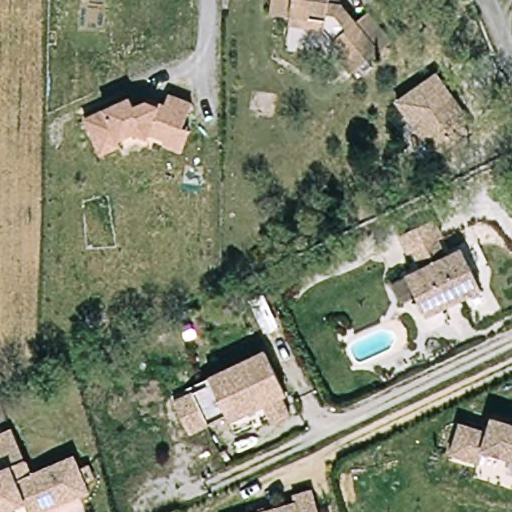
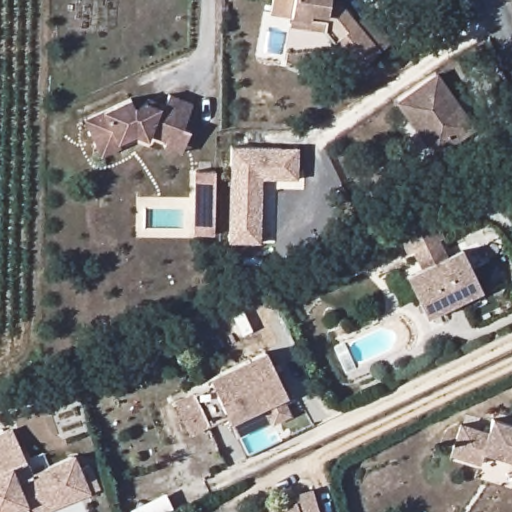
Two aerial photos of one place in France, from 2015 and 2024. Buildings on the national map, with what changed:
unchanged [(343,57),(318,27),(319,19),(265,15),(266,0),(335,0),(333,10),(347,12),(360,28),(373,18),(396,45),(351,81),(336,63),(343,57)]
unchanged [(434,163),(398,108),(439,81),(475,136),(434,163)]
unchanged [(170,144),(153,136),(149,139),(136,133),(121,140),(123,145),(104,155),(86,117),(134,97),(139,108),(156,101),(172,109),(177,98),(200,109),(187,133),(179,149),(170,144)]
new [(298,180),(263,179),(262,244),(229,243),(231,146),(299,147),(298,180)]
new [(215,171),(214,234),(193,234),(194,171),(215,171)]
unchanged [(426,319),(404,276),(414,271),(397,237),(427,223),(448,213),(465,247),(460,249),(481,293),(426,319)]
unchanged [(276,423),(266,405),(228,423),(225,417),(186,435),(171,404),(184,397),(181,391),(263,353),(284,396),(294,414),(276,423)]
unchanged [(480,450),(477,461),(449,453),(457,423),(485,431),(489,417),(512,424),(512,459),(480,450)]
unchanged [(29,473),(71,455),(87,488),(33,512),(0,512),(0,433),(9,429),(29,473)]
unchanged [(293,504),(290,496),(310,490),(316,512),(263,512),(293,504)]

